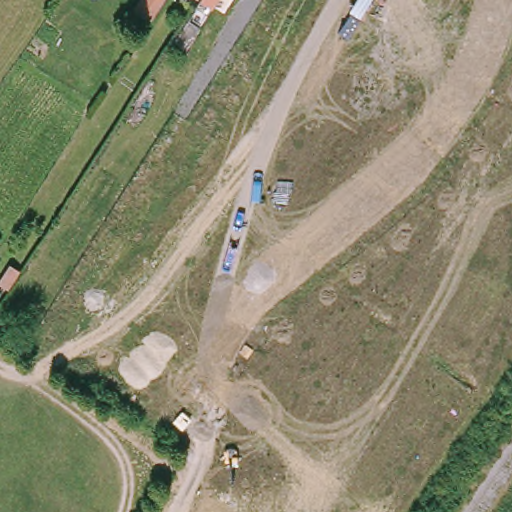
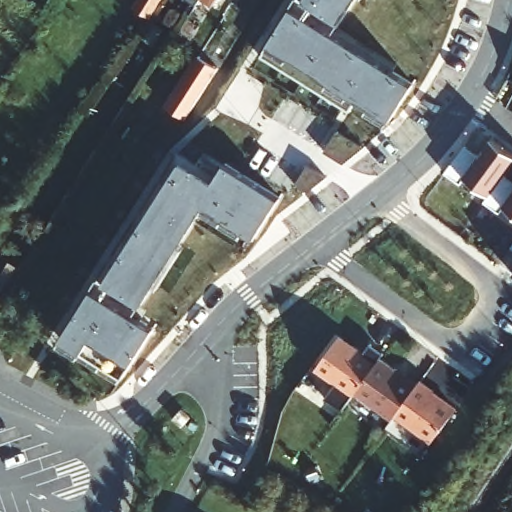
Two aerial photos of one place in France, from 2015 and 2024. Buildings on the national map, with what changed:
unchanged [(178,43),(206,1),(206,0),(223,0),(217,9),(190,51),(178,43)]
new [(342,22),(401,62),(397,67),(417,80),(416,82),(393,119),(359,97),(351,107),(263,53),(271,40),(295,0),(356,0),(342,22)]
new [(218,67),(185,118),(166,106),(198,54),(218,67)]
new [(478,157),(490,140),(512,156),(512,165),(503,177),(512,182),(512,215),(504,209),(500,214),(484,202),(488,197),(465,179),(460,186),(444,174),(465,147),(478,157)]
new [(141,307),(123,296),(117,305),(155,328),(122,378),(61,340),(181,152),(198,162),(202,156),(222,169),(226,162),(281,197),(255,239),(204,207),(141,307)]
demolished [(70,267),(28,335),(12,325),(32,295),(17,285),(41,247),(70,267)]
new [(511,249),(512,247),(512,249),(511,249)]
new [(364,351),(371,341),(387,353),(381,363),(358,396),(353,392),(342,407),(327,396),(336,385),(316,371),(342,333),(364,351)]
new [(427,447),(355,400),(381,363),(451,416),(427,447)]

